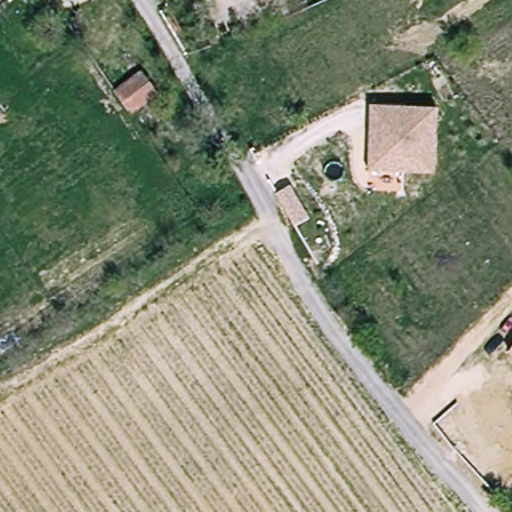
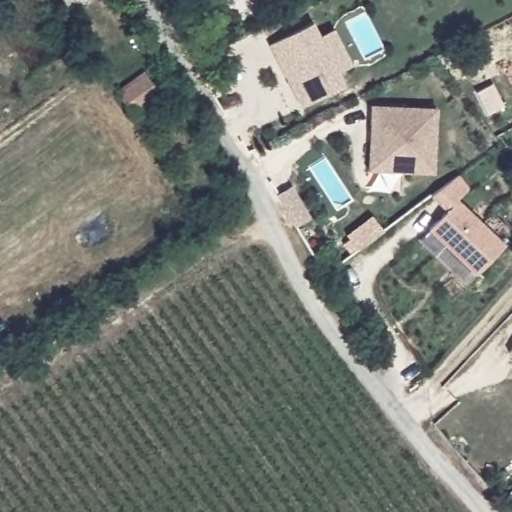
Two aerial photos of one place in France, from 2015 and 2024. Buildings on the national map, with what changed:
new [(319,37),(331,30),(352,64),(336,74),(344,86),(301,110),(269,45),(312,22),(319,37)]
unchanged [(139,114),(125,93),(152,73),(167,92),(139,114)]
unchanged [(436,110),(434,175),(366,173),(367,152),(368,127),(369,107),(436,110)]
new [(443,216),(427,201),(456,178),(466,190),(454,204),(503,249),(474,280),(426,235),(443,216)]
new [(291,236),(285,225),(273,203),(287,195),(299,217),(305,228),(291,236)]
unchanged [(512,347),(512,355),(508,352),(512,347)]

